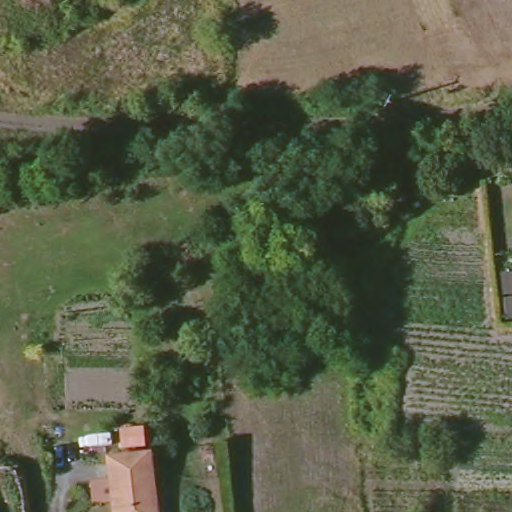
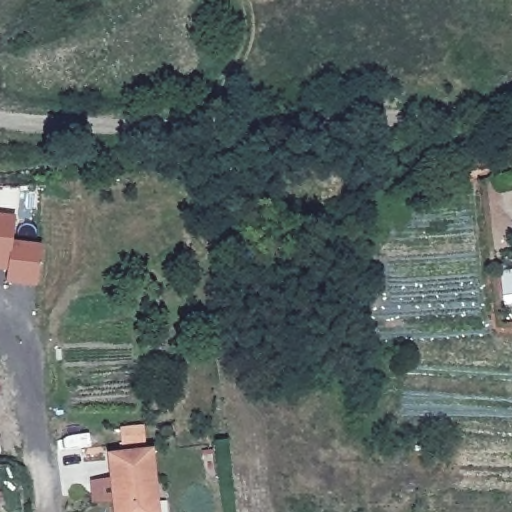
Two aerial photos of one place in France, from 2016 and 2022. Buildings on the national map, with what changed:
new [(40,247),(36,288),(6,285),(7,275),(0,274),(0,217),(13,219),(11,242),(40,247)]
unchanged [(118,423),(142,423),(143,441),(118,442),(118,423)]
unchanged [(151,512),(114,512),(111,460),(152,457),(153,487),(146,487),(146,496),(150,496),(151,512)]

